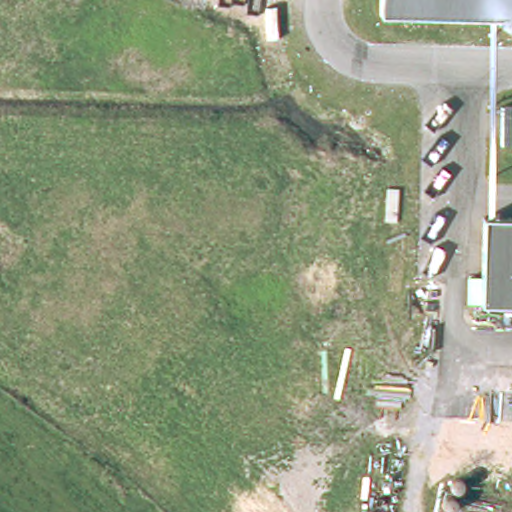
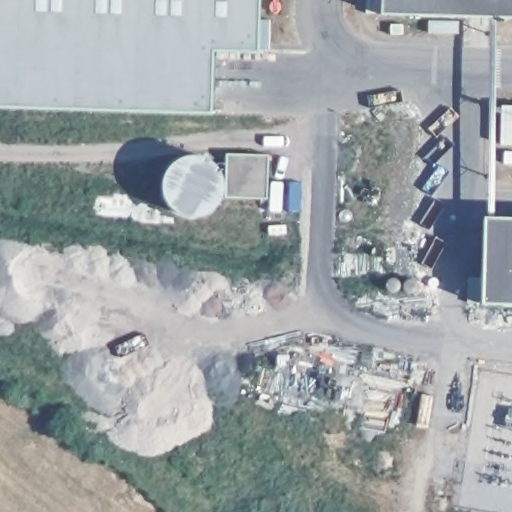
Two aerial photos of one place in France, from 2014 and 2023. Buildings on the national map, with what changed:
new [(258,52),(213,51),(211,113),(0,107),(0,0),(259,0),(258,52)]
unchanged [(380,0),(512,0),(512,15),(380,11),(380,0)]
unchanged [(505,134),(505,129),(506,102),(512,102),(512,140),(505,138),(505,134)]
new [(267,198),(226,196),(226,154),(268,155),(267,198)]
unchanged [(479,212),(512,213),(512,301),(478,300),(479,212)]

